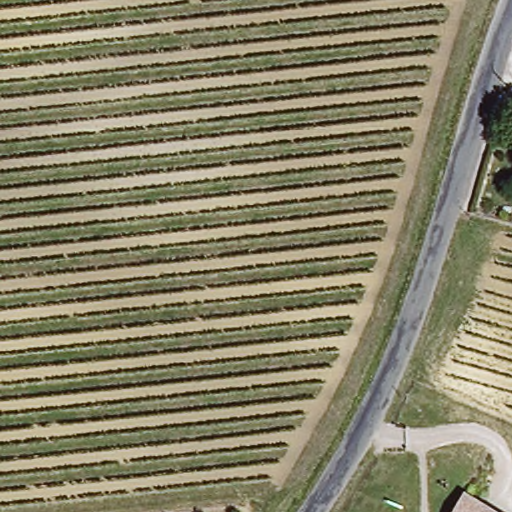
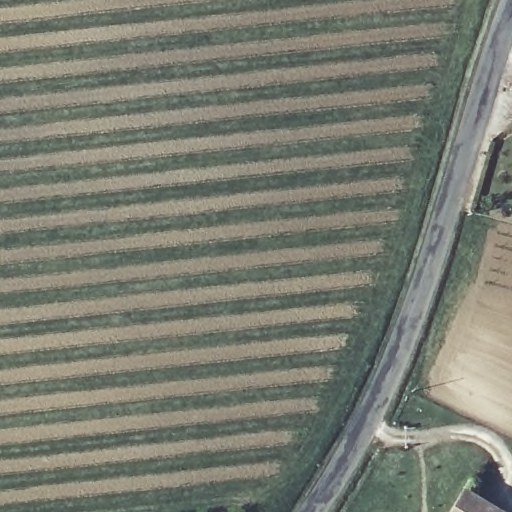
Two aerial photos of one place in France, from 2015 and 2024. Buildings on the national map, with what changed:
unchanged [(498,512),(449,512),(463,490),(498,512)]

